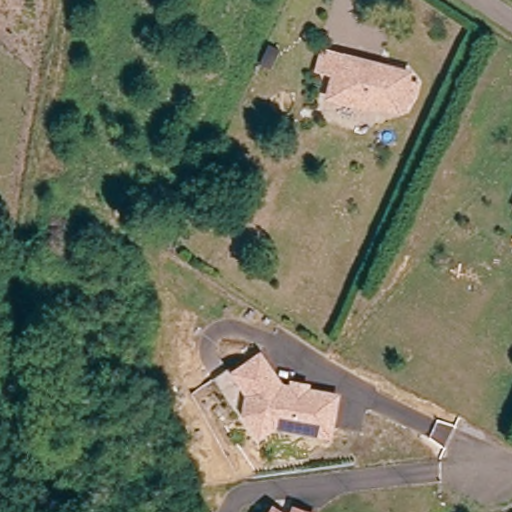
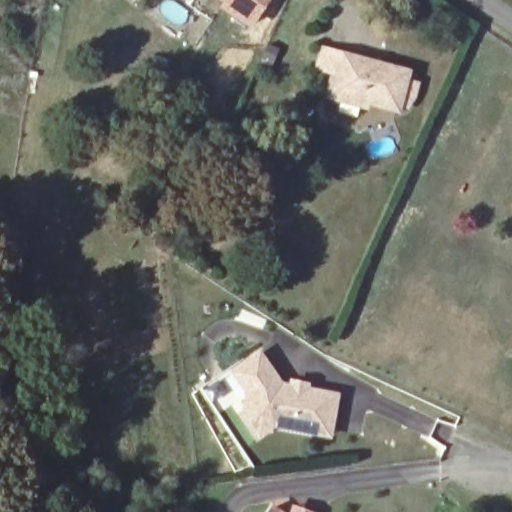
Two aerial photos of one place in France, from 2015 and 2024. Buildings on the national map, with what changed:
new [(220,9),(224,2),(222,0),(271,0),(251,30),(220,9)]
unchanged [(403,104),(402,109),(374,100),(373,107),(331,95),(338,69),(321,64),(326,47),(342,52),(361,57),(369,76),(374,77),(377,67),(384,64),(412,72),(410,79),(418,81),(410,106),(403,104)]
unchanged [(292,387),(293,381),(307,384),(306,390),(309,390),(337,395),(329,435),(274,425),(259,435),(243,412),(239,416),(212,378),(229,367),(232,372),(258,353),(280,384),(292,387)]
unchanged [(292,506),(311,512),(290,512),(292,506)]
unchanged [(272,508),(278,512),(270,512),(272,508)]

